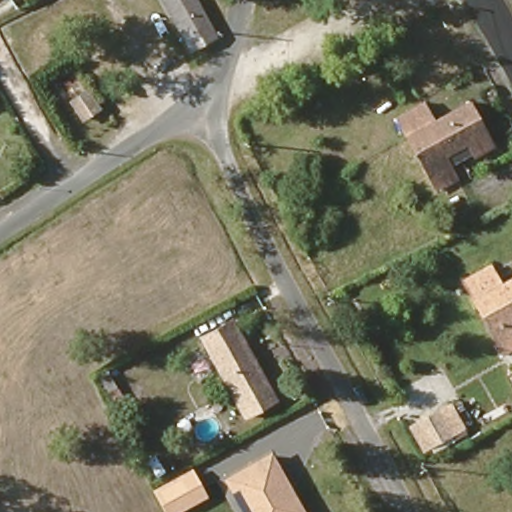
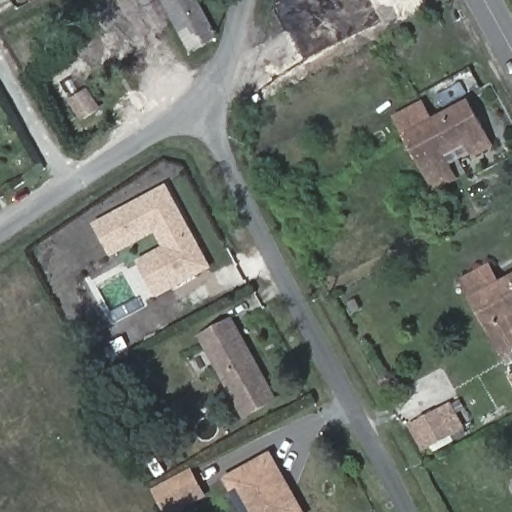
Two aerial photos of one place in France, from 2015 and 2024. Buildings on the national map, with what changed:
unchanged [(213,39),(188,52),(161,0),(193,0),(199,11),(213,39)]
unchanged [(87,119),(72,99),(86,90),(99,110),(87,119)]
unchanged [(492,140),(472,150),(467,141),(442,152),(456,182),(435,192),(397,119),(422,105),(432,120),(471,101),(492,140)]
new [(163,186),(207,267),(153,297),(134,261),(160,247),(154,236),(117,256),(97,222),(163,186)]
unchanged [(512,322),(512,356),(504,360),(463,285),(486,272),(496,290),(512,281),(512,319),(511,320),(512,322)]
unchanged [(263,400),(269,410),(246,422),(201,345),(223,333),(231,346),(236,343),(267,396),(263,400)]
unchanged [(429,445),(417,422),(441,408),(453,432),(429,445)]
unchanged [(307,512),(243,512),(224,478),(272,450),(307,512)]
new [(169,512),(167,509),(164,511),(152,489),(192,467),(208,497),(181,512),(169,512)]

